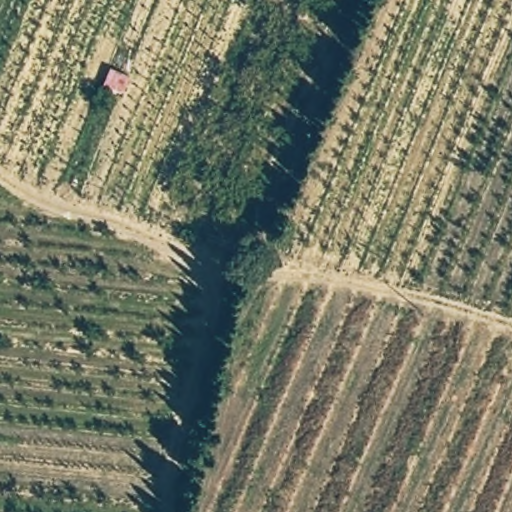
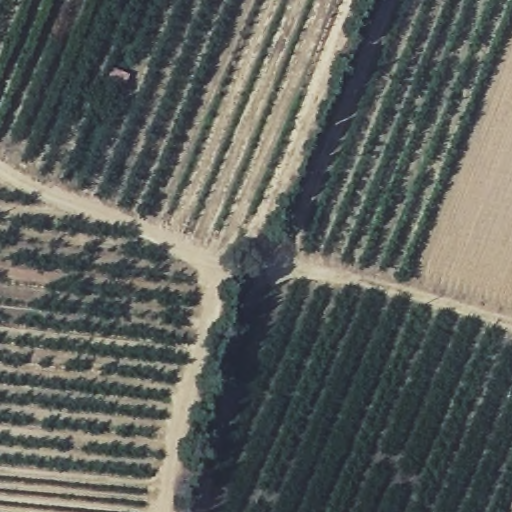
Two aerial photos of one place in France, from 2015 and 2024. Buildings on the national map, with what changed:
unchanged [(132,62),(126,89),(106,83),(112,57),(132,62)]

